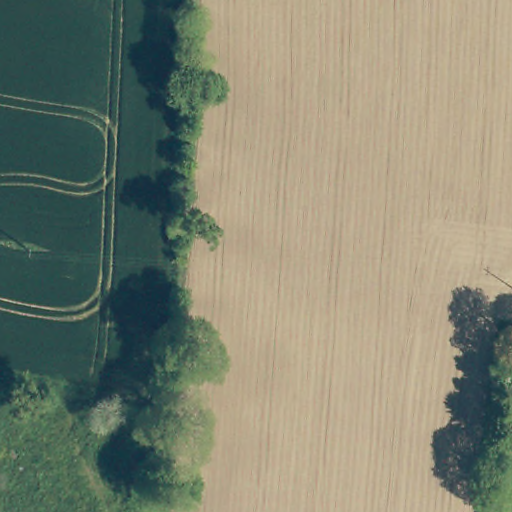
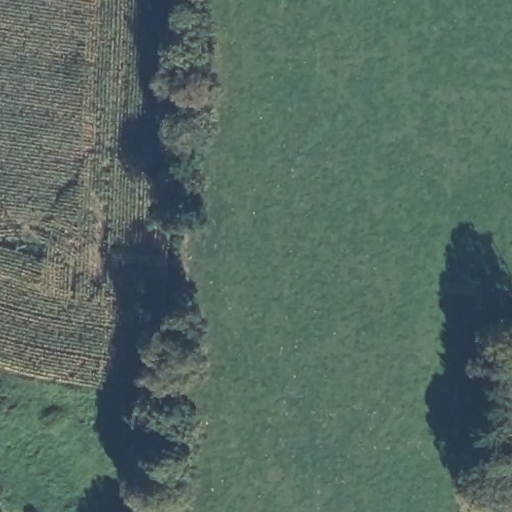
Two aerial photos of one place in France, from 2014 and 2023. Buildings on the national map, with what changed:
[]

